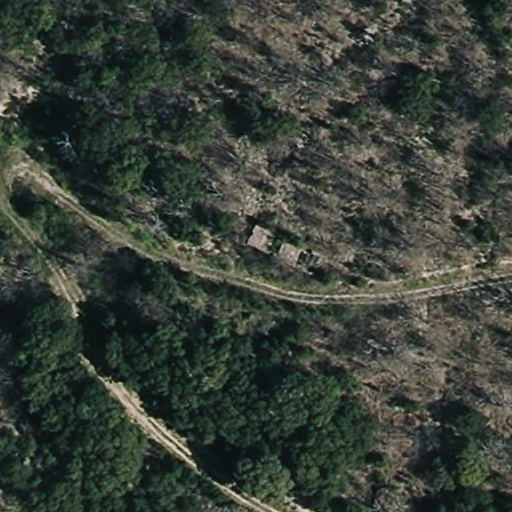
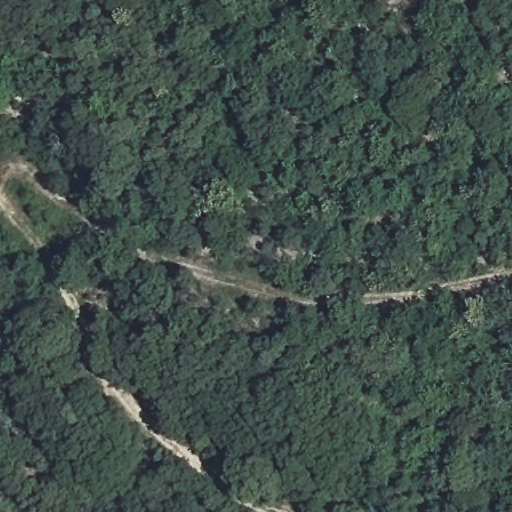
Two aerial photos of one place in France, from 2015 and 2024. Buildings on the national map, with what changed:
unchanged [(254,224),(319,255),(311,274),(245,242),(254,224)]

